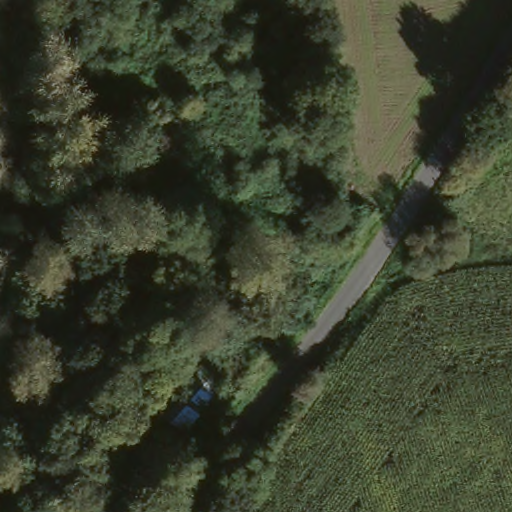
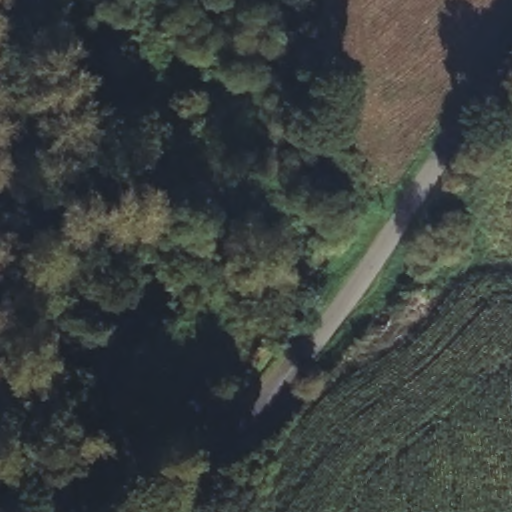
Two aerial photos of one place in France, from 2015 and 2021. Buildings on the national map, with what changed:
unchanged [(224,390),(181,441),(156,421),(199,372),(224,390)]

